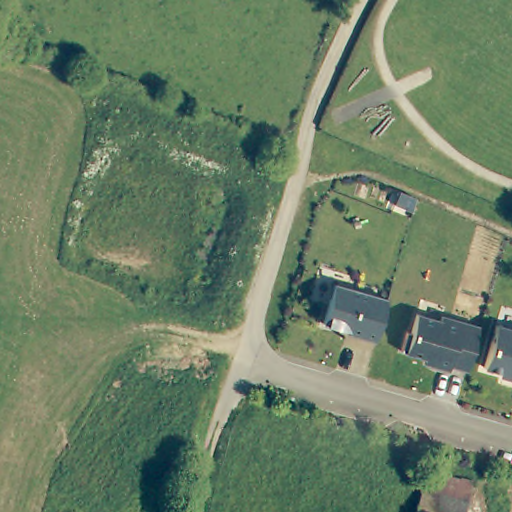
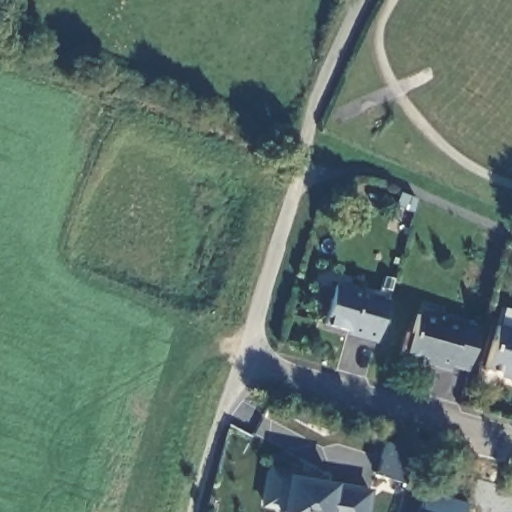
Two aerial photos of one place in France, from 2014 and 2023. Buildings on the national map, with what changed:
unchanged [(359,337),(359,335),(323,324),(334,285),(387,300),(375,342),(359,337)]
unchanged [(449,365),(448,370),(432,366),(433,361),(400,351),(406,332),(411,334),(416,315),(440,321),(441,316),(478,327),(475,338),(466,370),(449,365)]
unchanged [(510,375),(483,367),(495,325),(512,330),(512,379),(509,378),(510,375)]
new [(368,512),(279,512),(260,507),(267,468),(285,474),(337,482),(371,487),(368,512)]
unchanged [(424,495),(427,486),(472,500),(469,512),(425,512),(420,510),(424,495)]
unchanged [(425,512),(420,512),(420,510),(425,512)]

